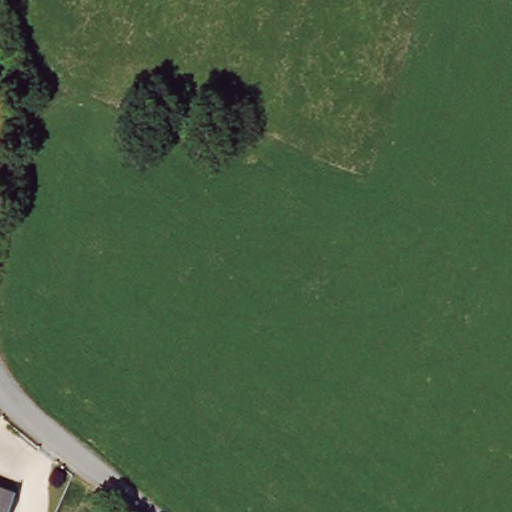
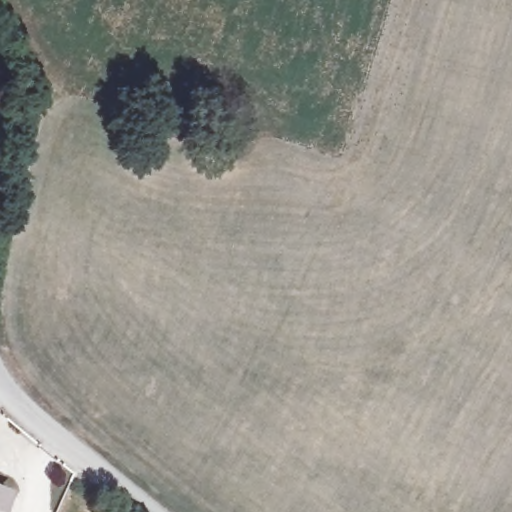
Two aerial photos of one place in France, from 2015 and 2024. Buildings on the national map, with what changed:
unchanged [(0,509),(0,489),(12,494),(5,511),(0,509)]

